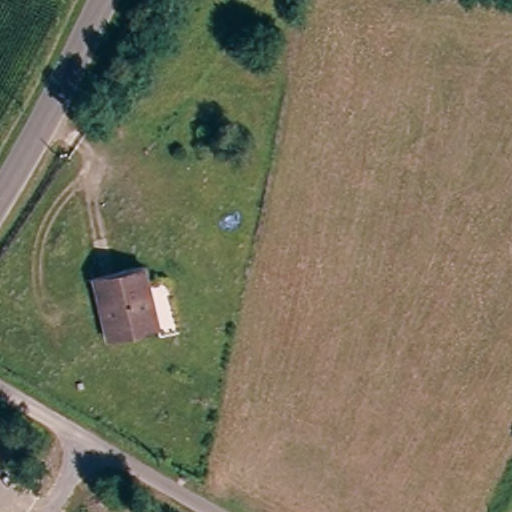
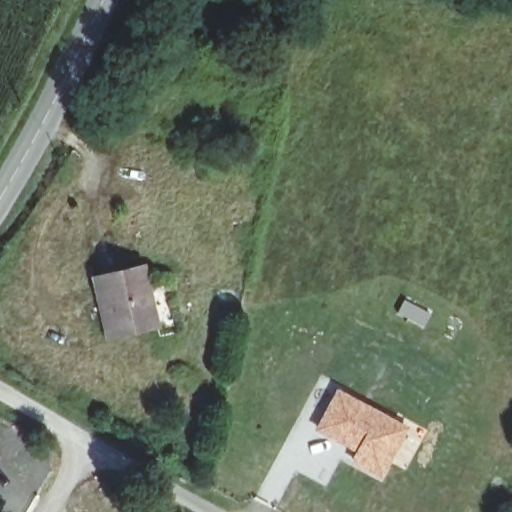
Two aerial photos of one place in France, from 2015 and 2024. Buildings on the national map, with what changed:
unchanged [(142,268),(158,327),(107,340),(91,282),(142,268)]
new [(336,388),(409,427),(382,481),(347,462),(353,452),(312,430),(336,388)]

